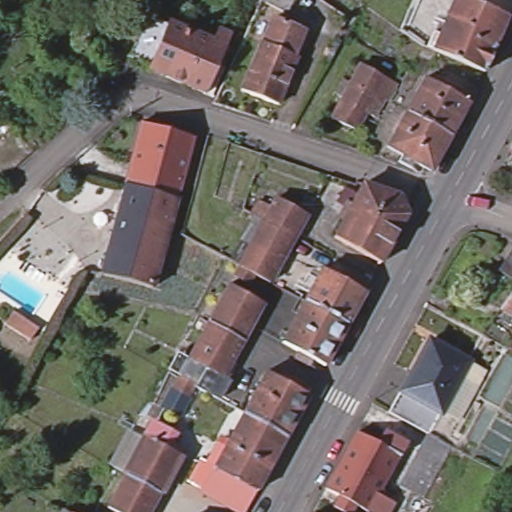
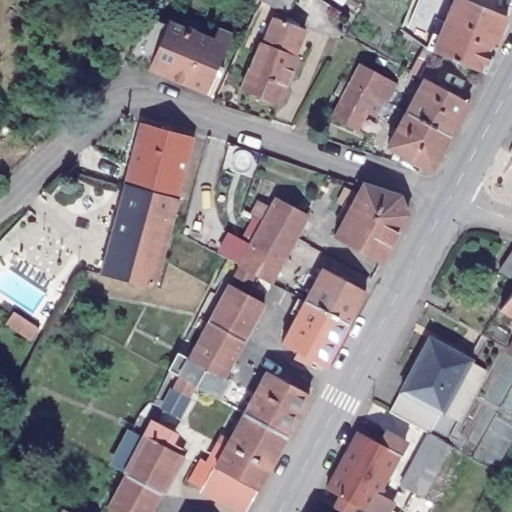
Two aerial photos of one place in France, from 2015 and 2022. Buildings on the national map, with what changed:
unchanged [(285,14),(258,2),(259,0),(291,0),(285,14)]
unchanged [(430,32),(437,35),(452,0),(469,0),(507,15),(495,44),(495,45),(485,71),(434,50),(425,46),(425,44),(430,32)]
unchanged [(167,25),(148,69),(127,60),(146,16),(167,25)]
unchanged [(276,105),(239,90),(257,42),(260,43),(271,18),(301,30),(291,55),(295,57),(276,105)]
unchanged [(168,20),(188,28),(168,77),(148,69),(167,25),(168,20)]
unchanged [(218,27),(230,32),(205,93),(168,77),(188,28),(213,39),(218,27)]
unchanged [(341,95),(350,78),(360,60),(385,73),(397,79),(387,97),(384,95),(375,112),(367,108),(355,128),(330,115),(341,95)]
unchanged [(424,74),(467,98),(450,131),(405,107),(424,74)]
unchanged [(386,142),(405,107),(450,131),(430,167),(420,161),(417,168),(416,168),(397,157),(401,151),(386,142)]
unchanged [(140,119),(193,134),(176,196),(123,182),(140,119)]
unchanged [(363,180),(398,192),(406,211),(380,259),(335,235),(363,180)]
unchanged [(157,282),(152,281),(151,284),(99,271),(123,182),(176,196),(177,196),(170,223),(169,223),(154,275),(160,276),(157,282)]
unchanged [(235,263),(259,219),(260,217),(247,210),(254,197),(267,205),(272,194),(303,211),(290,235),(265,280),(250,272),(245,282),(229,273),(235,263)]
unchanged [(510,250),(512,251),(512,283),(493,272),(510,250)]
unchanged [(323,265),(365,287),(346,320),(305,298),(323,265)]
unchanged [(225,281),(260,300),(243,329),(239,338),(205,317),(225,281)]
unchanged [(511,319),(495,311),(512,287),(512,328),(508,326),(511,319)]
unchanged [(305,298),(346,320),(324,362),(283,340),(305,298)]
unchanged [(167,385),(173,374),(180,363),(185,354),(205,317),(239,338),(235,345),(219,374),(225,376),(213,396),(190,383),(183,394),(167,385)]
unchanged [(410,364),(412,365),(430,333),(470,354),(442,406),(441,405),(400,383),(410,364)]
unchanged [(267,368),(308,391),(285,433),(245,410),(267,368)]
unchanged [(400,383),(441,405),(430,426),(388,405),(400,383)]
unchanged [(215,464),(245,410),(285,433),(256,487),(215,464)]
unchanged [(149,418),(168,429),(161,443),(176,452),(160,480),(155,490),(120,471),(141,433),(149,418)]
unchanged [(430,426),(453,439),(423,489),(435,496),(426,512),(423,512),(411,506),(420,490),(400,479),(430,426)]
unchanged [(357,429),(380,441),(385,430),(405,441),(386,477),(343,454),(357,429)]
unchanged [(343,454),(386,477),(375,496),(389,504),(385,512),(372,512),(346,498),(343,503),(332,497),(335,492),(325,487),(343,454)]
unchanged [(215,464),(256,487),(244,510),(202,487),(215,464)]
unchanged [(155,490),(149,501),(143,512),(117,512),(102,504),(120,471),(155,490)]
unchanged [(72,512),(71,512),(71,511),(72,512)]
unchanged [(314,512),(312,512),(312,511),(314,512)]

